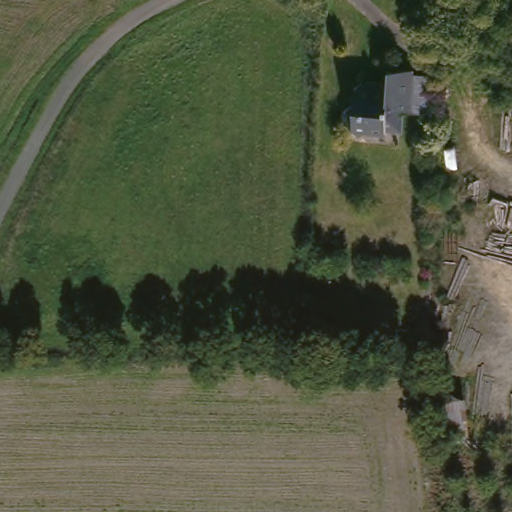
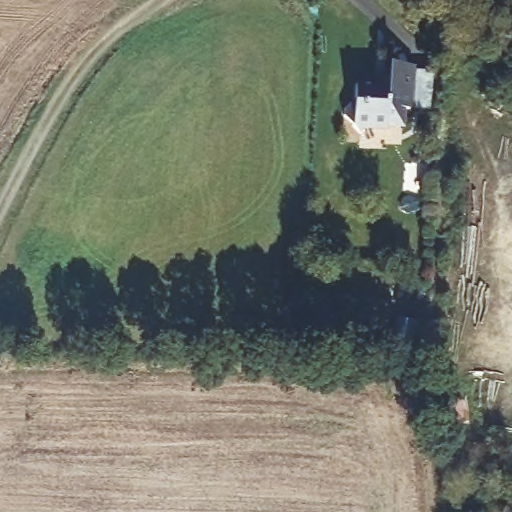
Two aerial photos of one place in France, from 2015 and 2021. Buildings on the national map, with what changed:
unchanged [(431,71),(430,111),(410,111),(403,111),(403,128),(388,128),(388,131),(369,131),(361,137),(344,120),(344,114),(355,105),(355,89),(362,82),(378,83),(378,86),(388,86),(388,71),(411,71),(431,71)]

